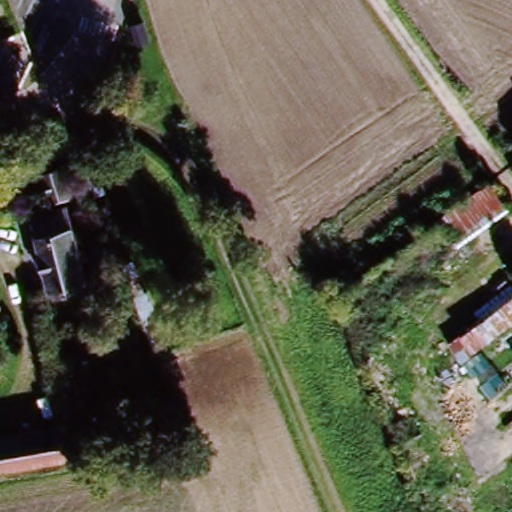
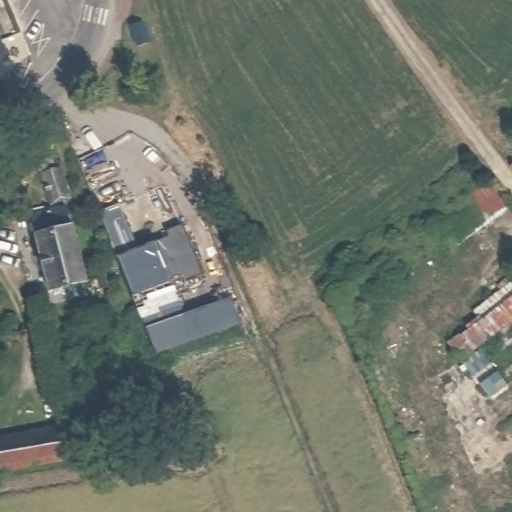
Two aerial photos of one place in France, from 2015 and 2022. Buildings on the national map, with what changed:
unchanged [(16,90),(0,98),(0,48),(16,90)]
demolished [(90,132),(104,170),(88,176),(73,137),(90,132)]
unchanged [(55,157),(72,198),(50,206),(35,166),(55,157)]
unchanged [(444,224),(486,194),(500,211),(457,242),(444,224)]
new [(100,214),(120,205),(137,248),(165,237),(164,231),(180,225),(199,274),(181,280),(179,275),(131,293),(100,214)]
unchanged [(52,295),(38,226),(68,220),(82,288),(52,295)]
demolished [(140,272),(153,305),(140,310),(128,277),(140,272)]
unchanged [(512,294),(512,324),(457,363),(443,345),(512,294)]
new [(228,301),(236,326),(154,355),(144,330),(228,301)]
unchanged [(65,425),(70,455),(0,471),(0,439),(65,425)]

